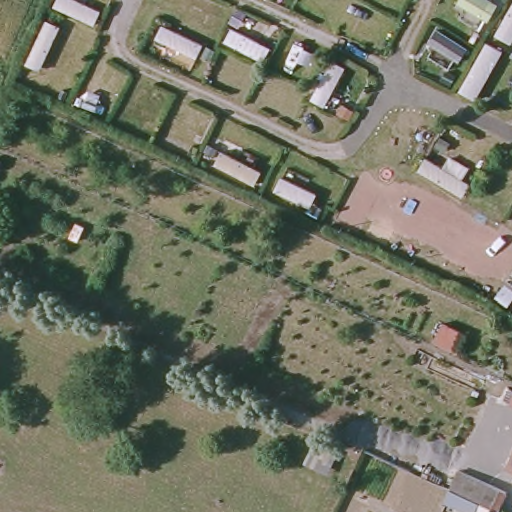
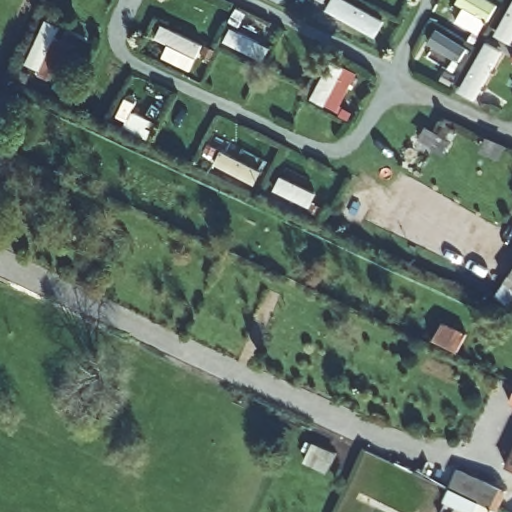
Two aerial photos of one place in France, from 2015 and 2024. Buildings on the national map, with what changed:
unchanged [(512,273),(512,299),(500,289),(512,273)]
unchanged [(469,334),(460,350),(438,339),(446,324),(469,334)]
unchanged [(512,400),(512,405),(510,404),(512,400)]
unchanged [(512,453),(512,471),(505,468),(512,453)]
unchanged [(449,502),(455,489),(464,471),(512,492),(512,494),(504,512),(502,512),(470,512),(449,502)]

